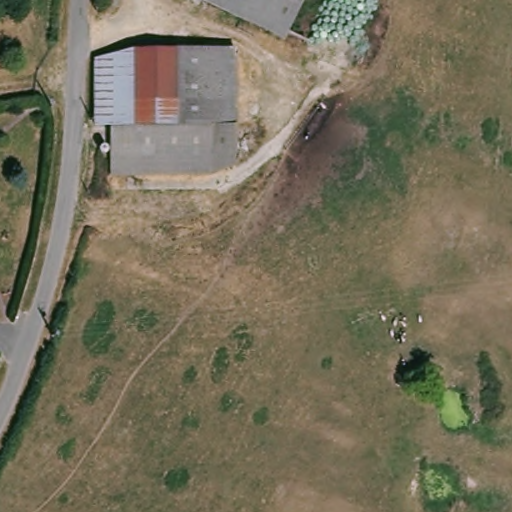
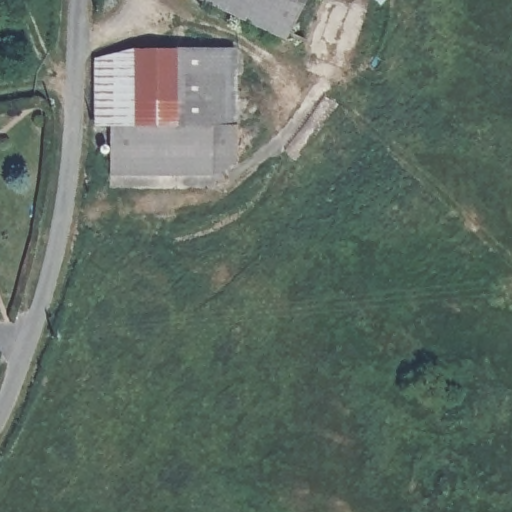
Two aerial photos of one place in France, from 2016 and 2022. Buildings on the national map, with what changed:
unchanged [(211,0),(260,0),(260,32),(211,0)]
unchanged [(260,32),(260,0),(292,0),(301,3),(275,42),(260,32)]
unchanged [(303,0),(301,3),(292,0),(303,0)]
unchanged [(96,53),(140,49),(232,54),(228,127),(215,126),(117,120),(100,119),(96,53)]
unchanged [(215,126),(211,176),(113,169),(117,120),(215,126)]

